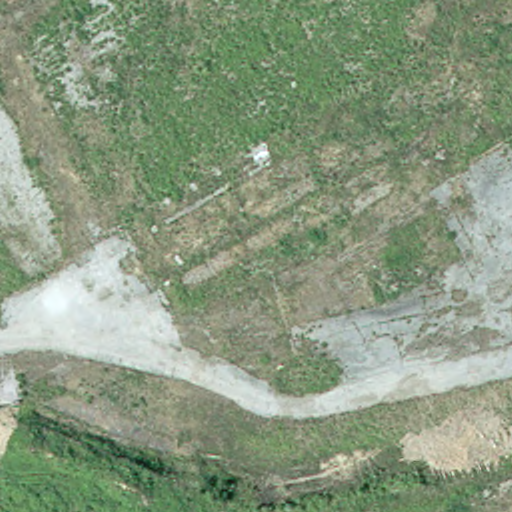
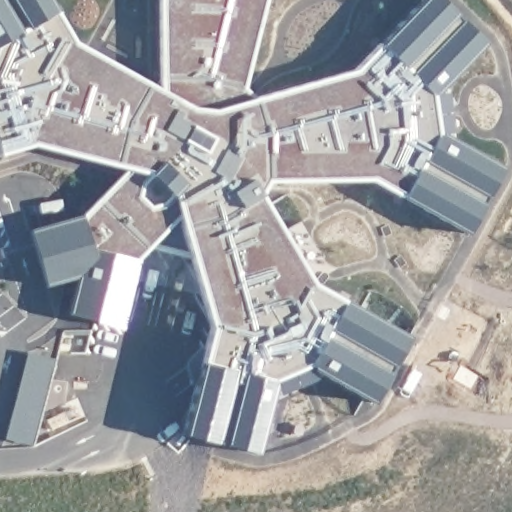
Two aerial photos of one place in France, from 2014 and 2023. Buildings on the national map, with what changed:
new [(261,0),(239,92),(252,102),(346,75),(417,0),(432,0),(479,45),(430,98),(432,131),(499,169),(464,234),(371,180),(264,181),(258,195),(309,283),(405,338),(369,400),(306,367),(274,381),(253,452),(182,433),(209,328),(179,224),(167,224),(132,261),(116,327),(90,322),(86,340),(58,333),(74,276),(42,283),(26,229),(80,217),(124,170),(30,145),(0,154),(0,0),(41,0),(68,51),(152,102),(156,0),(261,0)]
new [(30,354),(56,361),(34,447),(8,441),(30,354)]

